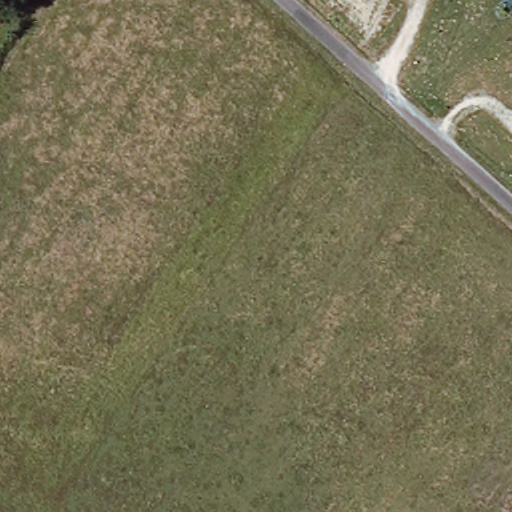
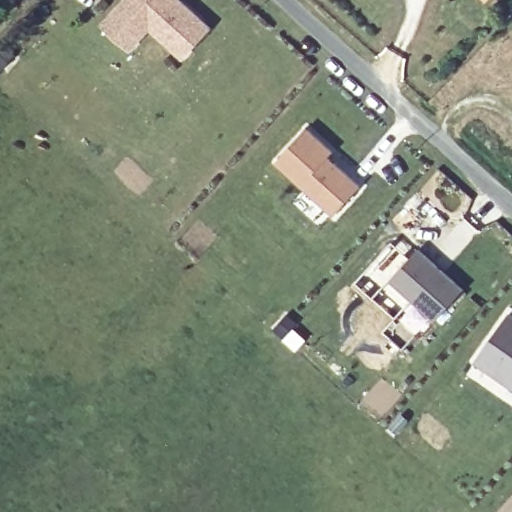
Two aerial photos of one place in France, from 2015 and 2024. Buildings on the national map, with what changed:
new [(178,0),(209,27),(182,56),(148,26),(129,49),(102,25),(125,0),(178,0)]
new [(303,130),(328,152),(324,158),(357,187),(332,214),(275,162),(303,130)]
new [(417,247),(461,289),(435,318),(389,278),(417,247)]
new [(505,314),(512,319),(512,388),(472,360),(505,314)]

